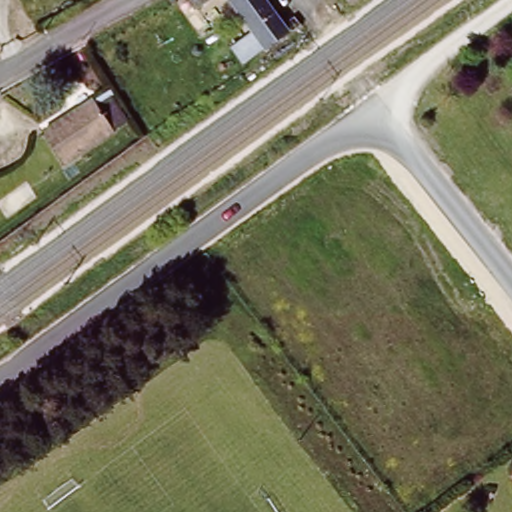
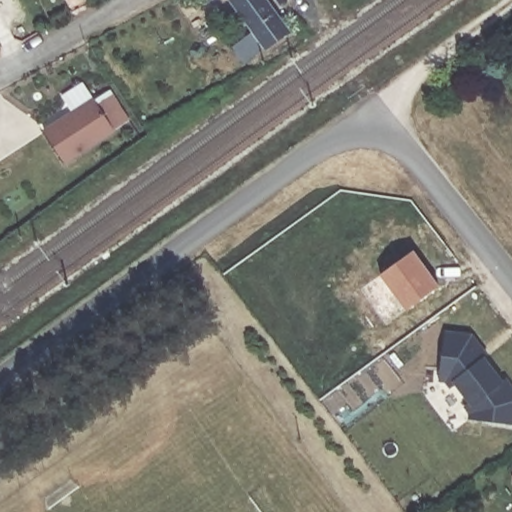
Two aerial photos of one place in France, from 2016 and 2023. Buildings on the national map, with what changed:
unchanged [(287,30),(242,62),(229,44),(249,27),(231,0),(262,0),(287,30)]
unchanged [(91,104),(111,135),(62,168),(42,135),(91,104)]
new [(445,330),(472,334),(487,355),(485,357),(504,380),(507,378),(512,387),(512,424),(467,418),(469,412),(464,406),(469,402),(455,384),(450,388),(445,381),(437,380),(445,330)]

